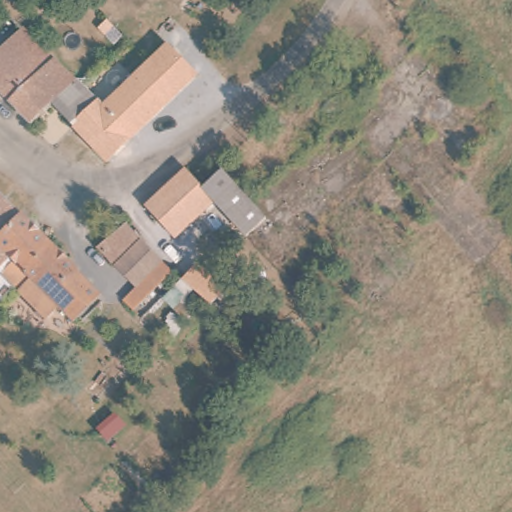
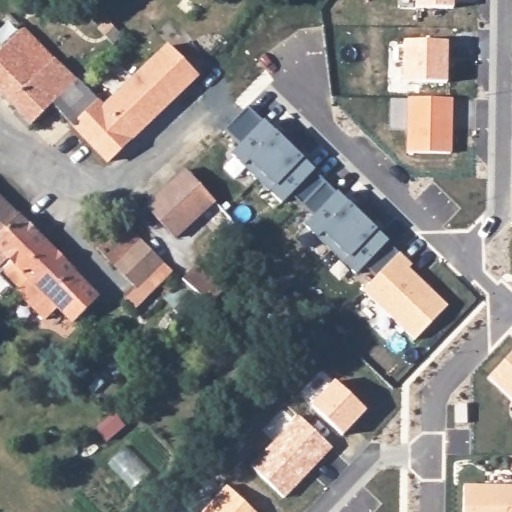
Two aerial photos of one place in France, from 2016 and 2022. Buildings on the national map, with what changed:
new [(416,8),(416,0),(453,0),(453,9),(416,8)]
unchanged [(53,56),(28,80),(55,106),(35,126),(0,91),(0,55),(16,39),(26,30),(53,56)]
new [(447,83),(403,82),(404,41),(447,42),(447,83)]
unchanged [(78,130),(102,107),(107,112),(171,50),(201,80),(113,166),(78,130)]
unchanged [(79,83),(55,106),(28,80),(53,56),(79,83)]
unchanged [(88,92),(102,107),(78,130),(55,106),(79,83),(88,92)]
new [(451,153),(406,151),(407,97),(452,98),(451,153)]
new [(366,265),(357,274),(305,225),(315,215),(292,192),(282,202),(232,153),(241,142),(227,129),(247,109),(261,122),(278,138),(285,130),(304,149),(299,158),(354,210),(360,202),(378,220),(371,226),(387,241),(398,252),(377,276),(366,265)]
unchanged [(189,167),(208,189),(217,197),(180,234),(151,201),(189,167)]
demolished [(227,170),(279,225),(259,245),(217,197),(208,189),(227,170)]
unchanged [(5,247),(0,243),(0,197),(28,225),(5,247)]
unchanged [(28,225),(53,251),(29,273),(19,262),(13,257),(5,265),(0,260),(0,243),(5,247),(28,225)]
unchanged [(134,230),(149,247),(110,285),(93,268),(134,230)]
unchanged [(151,250),(170,269),(144,295),(125,275),(151,250)]
unchanged [(28,295),(23,289),(7,273),(19,262),(29,273),(53,251),(80,278),(109,308),(91,325),(86,321),(81,326),(64,308),(53,320),(28,295)]
new [(377,276),(398,252),(411,265),(408,267),(447,305),(414,340),(363,290),(377,276)]
unchanged [(172,270),(181,280),(140,321),(129,310),(172,270)]
new [(487,377),(512,352),(512,401),(487,377)]
new [(344,435),(311,405),(333,381),(366,411),(344,435)]
new [(284,498),(250,465),(297,415),(332,448),(284,498)]
new [(464,484),(512,485),(512,512),(463,512),(464,484)]

